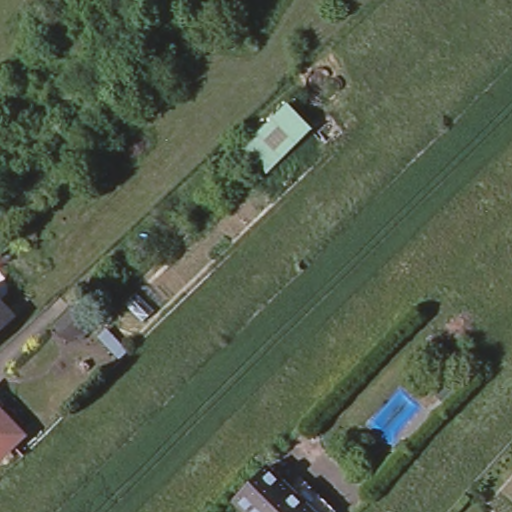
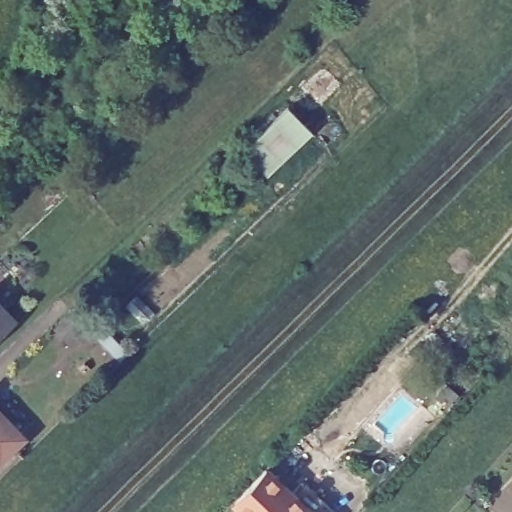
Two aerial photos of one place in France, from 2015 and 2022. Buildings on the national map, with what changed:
unchanged [(286,103),(314,132),(266,178),(239,147),(286,103)]
unchanged [(0,329),(0,303),(13,317),(0,329)]
unchanged [(1,455),(0,454),(0,415),(9,425),(21,437),(1,455)]
unchanged [(237,505),(268,472),(296,500),(309,487),(326,505),(334,512),(244,512),(237,505)]

